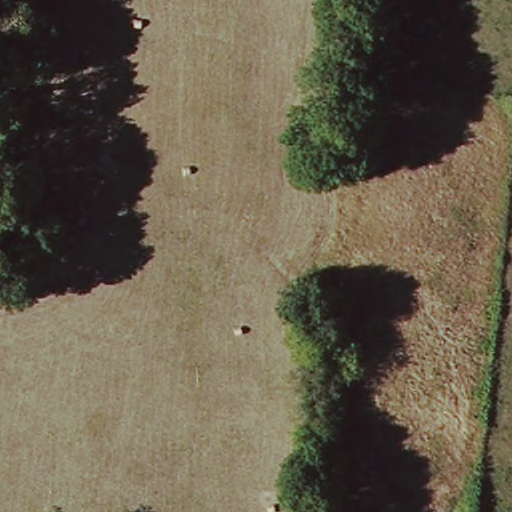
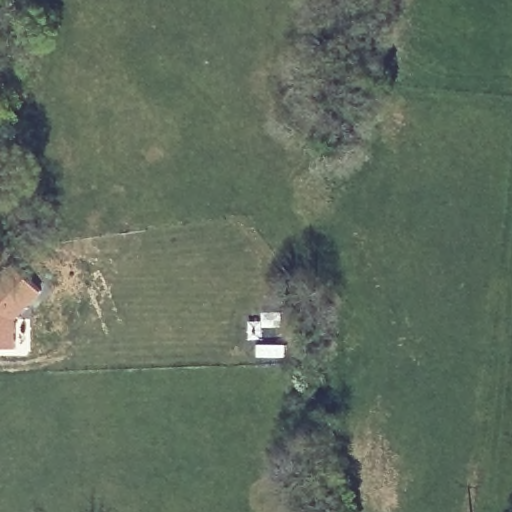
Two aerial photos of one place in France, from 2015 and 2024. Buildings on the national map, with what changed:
new [(44,292),(18,318),(18,350),(0,350),(0,280),(17,265),(44,292)]

